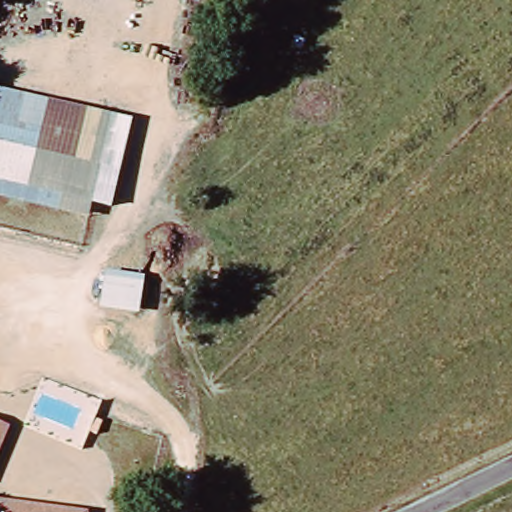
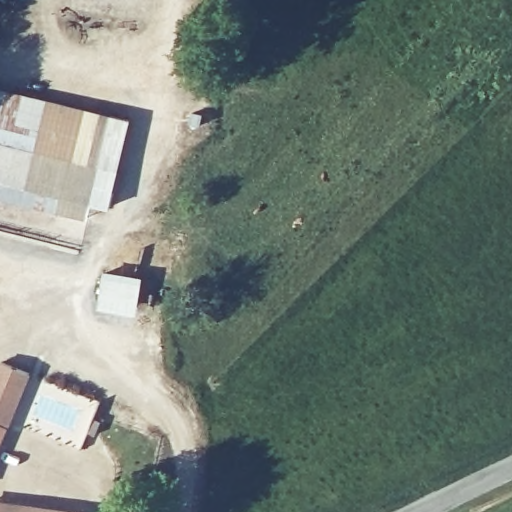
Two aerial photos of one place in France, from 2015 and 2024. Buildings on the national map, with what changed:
unchanged [(91,205),(86,220),(0,199),(0,89),(115,117),(102,167),(120,171),(112,209),(91,205)]
unchanged [(139,313),(100,307),(106,267),(144,273),(139,313)]
new [(31,374),(10,427),(8,426),(0,447),(0,361),(31,374)]
demolished [(13,438),(0,470),(0,433),(13,438)]
unchanged [(67,512),(0,512),(0,505),(67,512)]

